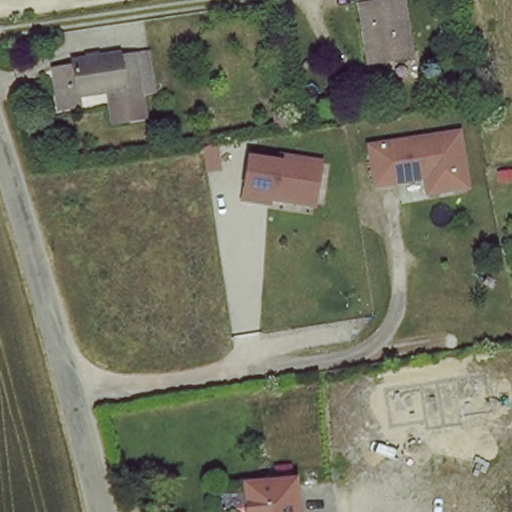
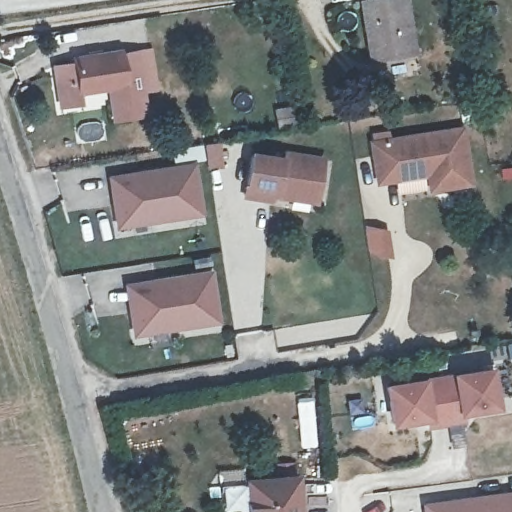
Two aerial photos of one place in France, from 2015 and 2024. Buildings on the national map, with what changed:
unchanged [(414,53),(370,59),(362,0),(407,0),(414,53)]
unchanged [(125,77),(80,85),(81,96),(60,100),(53,59),(73,56),(73,51),(120,42),(121,47),(126,46),(140,44),(145,74),(146,85),(128,88),(125,77)]
unchanged [(150,105),(115,111),(112,91),(81,96),(80,85),(125,77),(128,88),(146,85),(150,105)]
unchanged [(461,129),(469,184),(429,190),(428,175),(376,182),(371,143),(461,129)]
unchanged [(266,194),(266,199),(239,195),(246,153),(277,158),(278,152),(318,158),(313,191),(311,201),(266,194)]
new [(104,175),(194,161),(203,216),(113,229),(104,175)]
new [(122,283),(211,269),(220,324),(130,337),(122,283)]
new [(494,366),(499,410),(464,415),(465,424),(426,430),(425,421),(391,426),(381,384),(494,366)]
unchanged [(295,483),(297,512),(251,512),(249,487),(295,483)]
new [(512,490),(512,512),(421,512),(420,502),(512,490)]

